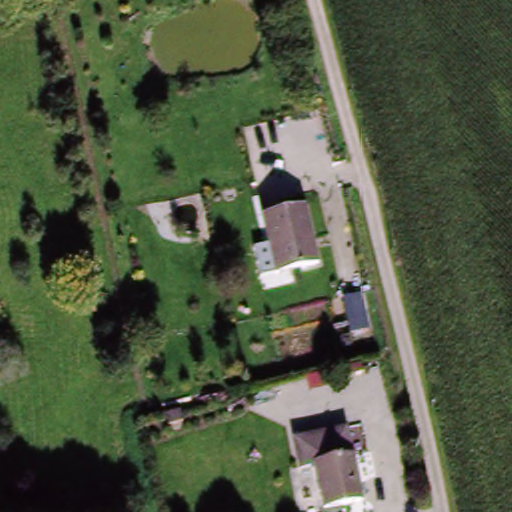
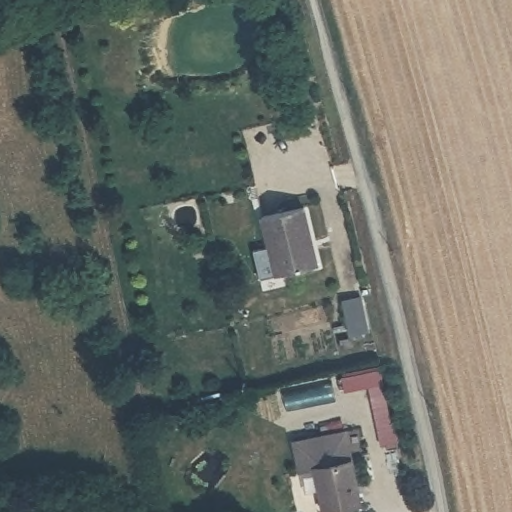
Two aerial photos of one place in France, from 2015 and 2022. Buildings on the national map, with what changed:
unchanged [(247,249),(264,245),(256,214),(305,204),(320,266),(295,271),(297,283),(261,294),(247,249)]
unchanged [(312,473),(297,474),(291,440),(347,429),(365,504),(322,512),(319,512),(312,473)]

